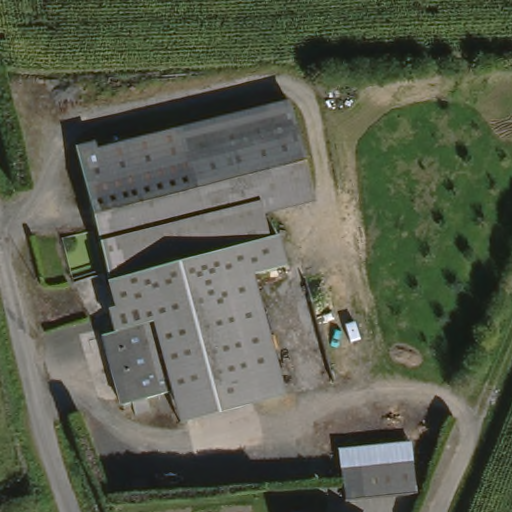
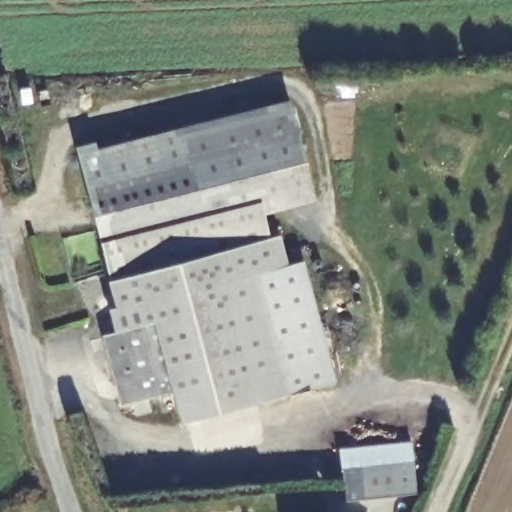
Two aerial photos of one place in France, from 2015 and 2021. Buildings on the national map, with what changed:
unchanged [(93,144),(96,152),(288,106),(314,204),(263,215),(269,238),(278,237),(289,269),(254,281),(287,399),(173,424),(165,395),(123,402),(105,339),(116,335),(103,288),(111,286),(73,149),(93,144)]
new [(305,262),(338,381),(285,394),(254,281),(289,269),(288,266),(305,262)]
unchanged [(411,489),(339,492),(338,461),(410,459),(411,489)]

